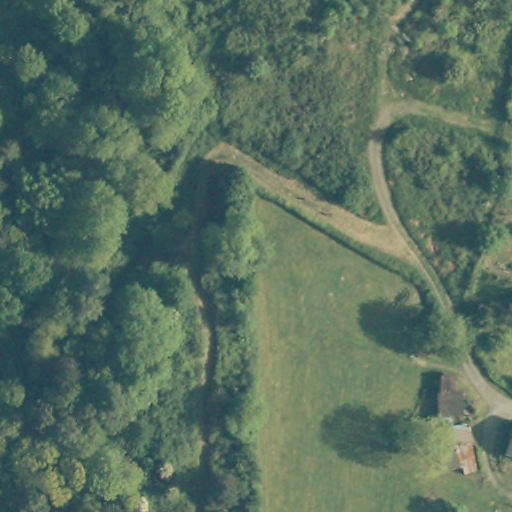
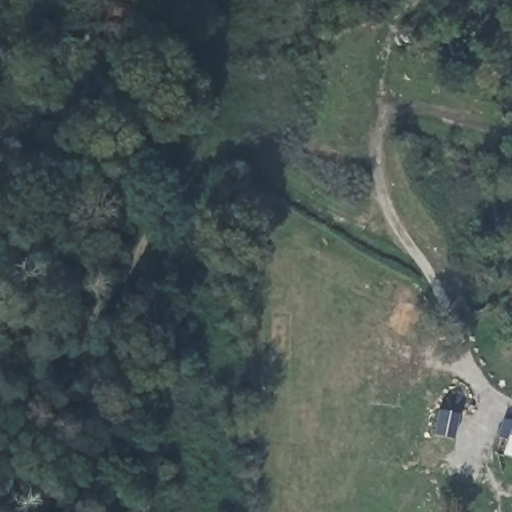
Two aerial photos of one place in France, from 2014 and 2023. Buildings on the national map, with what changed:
unchanged [(510,460),(512,452),(512,461),(510,460)]

